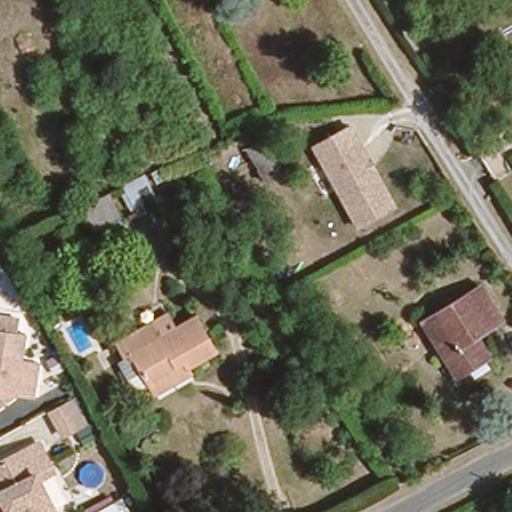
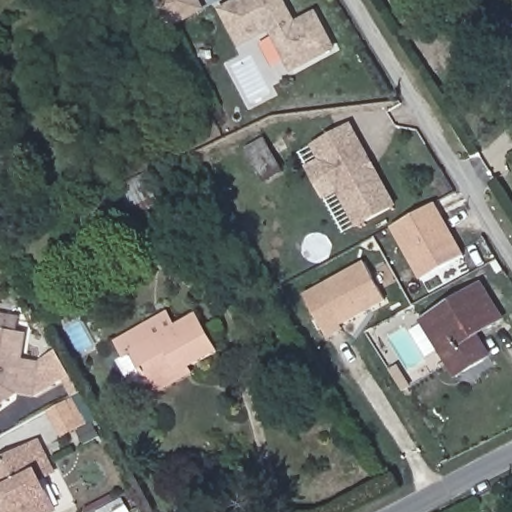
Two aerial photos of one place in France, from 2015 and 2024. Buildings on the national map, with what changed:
new [(153,0),(200,0),(205,11),(169,31),(153,0)]
new [(285,0),(296,22),(316,12),(336,50),(291,73),(270,32),(240,47),(219,10),(238,0),(285,0)]
unchanged [(394,205),(358,227),(309,151),(345,129),(346,131),(394,205)]
unchanged [(271,174),(253,141),(258,139),(271,132),(290,164),(277,171),(271,174)]
unchanged [(124,179),(145,172),(160,203),(139,211),(124,179)]
unchanged [(121,209),(96,221),(85,197),(111,186),(121,209)]
new [(434,202),(462,255),(420,277),(391,225),(434,202)]
new [(363,261),(384,298),(338,322),(340,326),(325,333),(304,293),(363,261)]
unchanged [(500,318),(475,333),(490,355),(458,374),(423,321),(478,286),(500,318)]
unchanged [(134,355),(126,358),(119,345),(131,337),(151,326),(156,334),(166,328),(170,333),(199,317),(219,351),(190,367),(194,373),(164,392),(158,395),(152,385),(134,355)]
unchanged [(19,330),(16,356),(34,357),(30,392),(10,390),(4,396),(0,399),(0,329),(19,330)]
unchanged [(86,423),(60,438),(44,410),(51,406),(70,395),(86,423)]
unchanged [(31,440),(47,469),(33,476),(50,507),(41,512),(0,512),(0,457),(31,440)]

